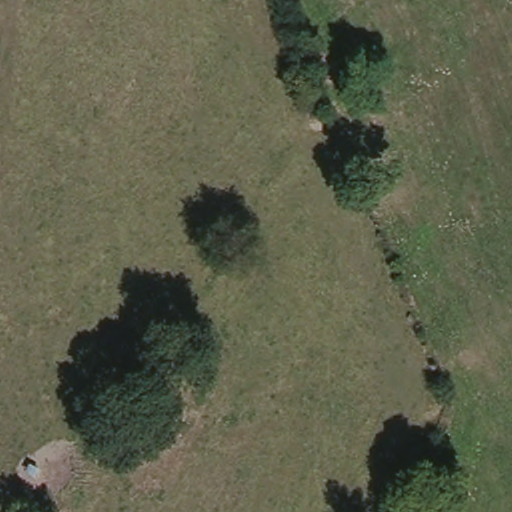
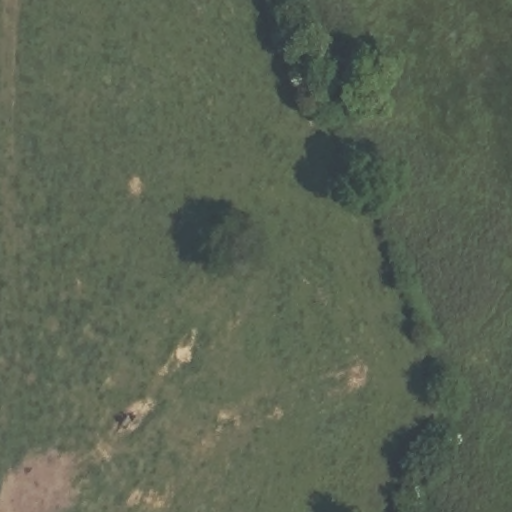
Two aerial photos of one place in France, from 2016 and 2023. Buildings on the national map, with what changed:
[]

